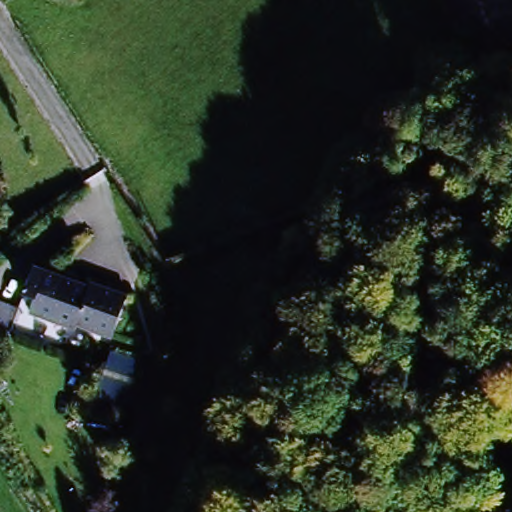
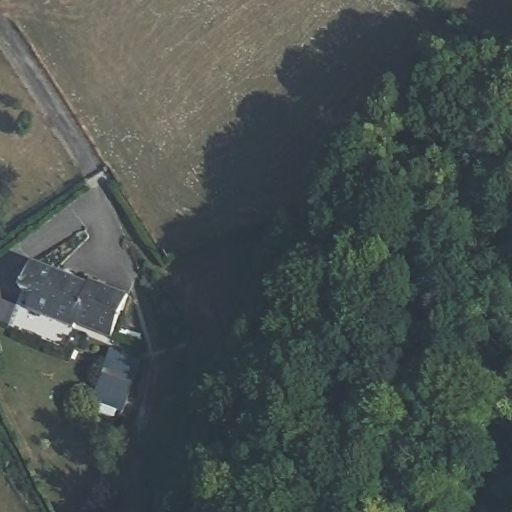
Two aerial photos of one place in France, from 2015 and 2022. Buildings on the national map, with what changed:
unchanged [(94,287),(95,284),(122,295),(106,338),(72,325),(70,330),(25,314),(32,296),(21,292),(31,264),(94,287)]
unchanged [(154,365),(138,411),(96,393),(112,351),(154,365)]

